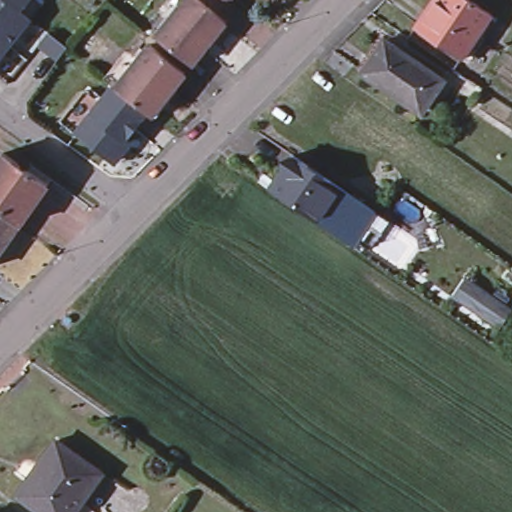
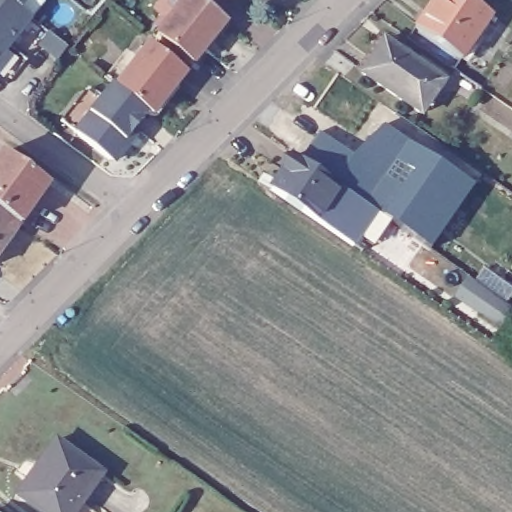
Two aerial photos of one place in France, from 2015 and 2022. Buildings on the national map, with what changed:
unchanged [(19,5),(30,14),(26,18),(4,45),(0,42),(0,0),(23,0),(19,5)]
unchanged [(190,0),(205,0),(228,19),(232,26),(224,37),(218,36),(196,62),(195,62),(161,35),(190,0)]
unchanged [(432,0),(468,0),(489,15),(459,59),(413,27),(432,0)]
unchanged [(0,50),(0,42),(4,45),(0,50)]
unchanged [(155,42),(190,71),(166,100),(167,106),(160,115),(156,115),(151,111),(120,86),(155,42)]
unchanged [(377,52),(383,44),(442,81),(435,92),(420,114),(362,75),(377,52)]
unchanged [(115,85),(150,112),(130,138),(95,112),(115,85)]
unchanged [(132,147),(122,159),(112,159),(79,132),(95,112),(130,138),(132,147)]
new [(319,134),(352,156),(385,125),(475,186),(430,252),(377,215),(354,249),(344,242),(368,209),(346,194),(300,161),(319,134)]
unchanged [(47,185),(19,224),(0,211),(0,156),(2,153),(47,185)]
unchanged [(268,190),(292,156),(346,194),(323,227),(268,190)]
unchanged [(368,209),(344,242),(323,227),(346,194),(368,209)]
unchanged [(0,211),(19,224),(0,250),(0,211)]
unchanged [(467,275),(512,304),(512,317),(506,326),(455,293),(467,275)]
unchanged [(78,500),(70,512),(42,512),(17,495),(50,448),(55,441),(101,473),(96,480),(81,502),(78,500)]

